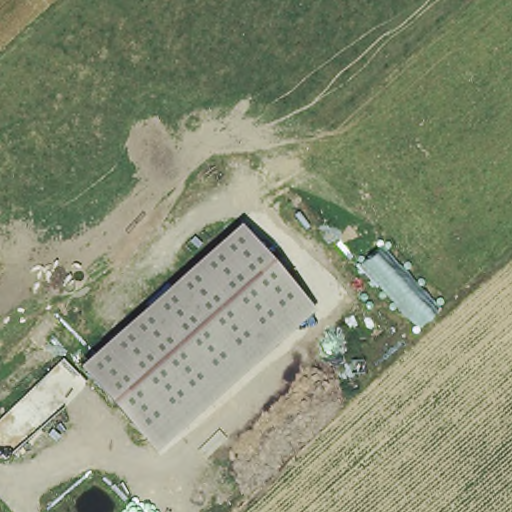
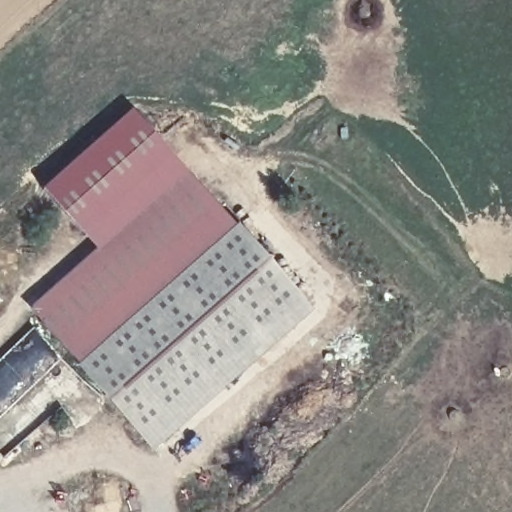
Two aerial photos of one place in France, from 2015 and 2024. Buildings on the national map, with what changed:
new [(29,308),(97,249),(45,188),(134,110),(190,172),(242,224),(79,366),(29,308)]
unchanged [(315,309),(155,451),(79,366),(242,224),(315,309)]

